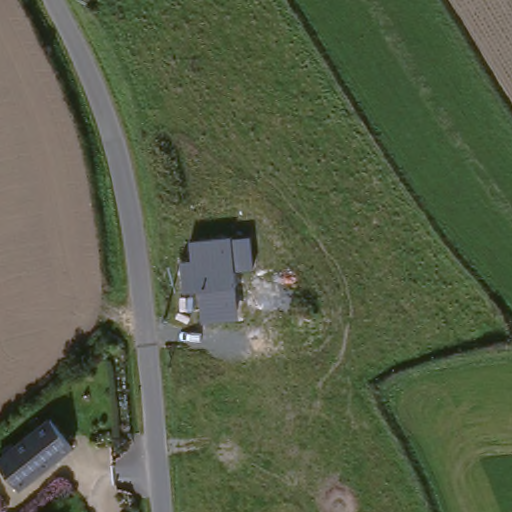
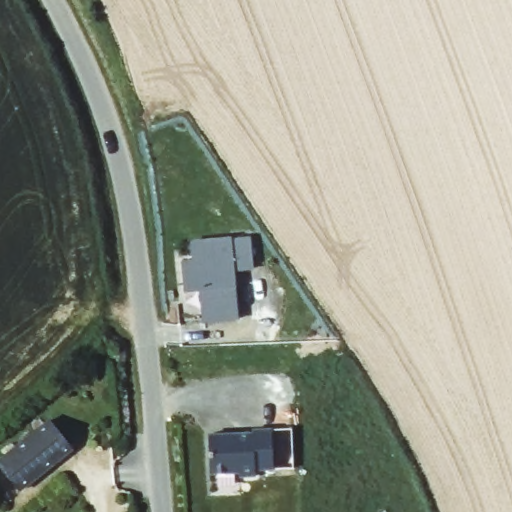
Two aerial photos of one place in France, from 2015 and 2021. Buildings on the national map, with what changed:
unchanged [(254,267),(235,271),(239,317),(204,322),(201,290),(186,292),(183,262),(194,260),(193,242),(251,236),(254,267)]
unchanged [(69,451),(19,496),(0,475),(0,460),(43,422),(69,451)]
new [(251,432),(251,429),(271,428),(273,468),(254,469),(254,475),(238,476),(238,472),(209,473),(208,434),(251,432)]

